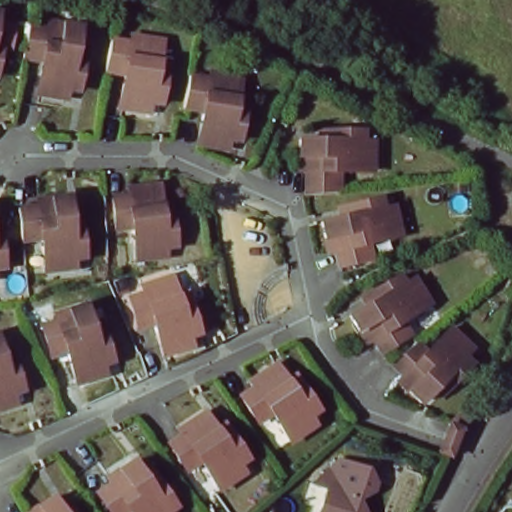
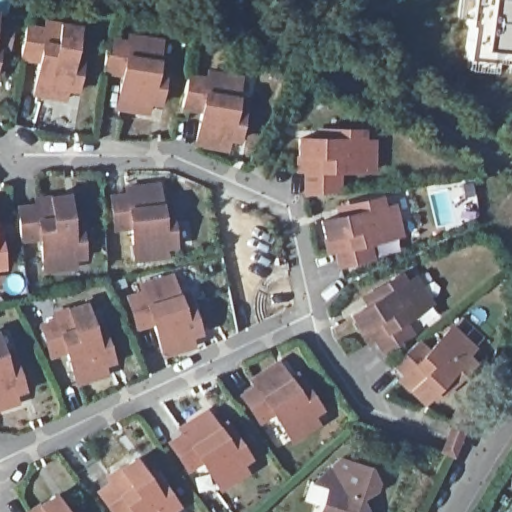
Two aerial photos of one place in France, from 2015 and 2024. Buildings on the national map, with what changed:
new [(467,24),(461,22),(464,0),(512,0),(512,63),(462,59),(467,24)]
unchanged [(41,28),(42,21),(74,26),(69,56),(78,58),(73,90),(63,88),(61,99),(31,94),(36,60),(23,58),(20,57),(22,45),(25,25),(41,28)]
unchanged [(1,32),(0,38),(0,32),(1,32)]
unchanged [(128,42),(129,35),(160,40),(155,70),(165,71),(160,103),(150,101),(148,112),(117,108),(123,74),(107,71),(103,70),(103,68),(108,39),(128,42)]
unchanged [(207,79),(208,71),(239,76),(234,107),(244,109),(238,140),(228,139),(226,149),(196,144),(198,131),(199,125),(202,110),(189,108),(187,108),(183,107),(182,107),(186,82),(187,75),(207,79)]
unchanged [(334,138),(334,129),(366,128),(366,137),(377,137),(377,170),(342,170),(342,191),(310,195),(310,170),(309,170),(303,170),(303,138),(334,138)]
unchanged [(127,195),(127,193),(126,187),(157,184),(161,215),(170,214),(174,245),(164,246),(165,257),(135,261),(131,227),(115,229),(111,196),(127,195)]
unchanged [(357,213),(355,204),(385,196),(388,206),(398,204),(405,235),(372,242),(375,258),(344,265),(341,250),(334,251),(327,220),(357,213)]
unchanged [(67,200),(70,231),(79,230),(82,261),(72,262),(73,273),(44,276),(40,242),(20,245),(16,213),(22,212),(35,211),(36,210),(35,204),(67,200)]
unchanged [(3,225),(4,242),(6,270),(0,271),(0,226),(3,225)]
unchanged [(399,273),(404,281),(413,275),(430,302),(400,320),(409,334),(382,351),(379,345),(374,337),(368,341),(350,314),(377,297),(372,290),(399,273)]
unchanged [(147,292),(144,285),(175,275),(184,305),(193,301),(203,332),(194,335),(197,345),(168,355),(165,345),(158,322),(141,328),(131,297),(147,292)]
unchanged [(55,320),(53,313),(83,303),(93,332),(102,330),(111,360),(102,363),(105,373),(76,382),(66,351),(50,356),(40,325),(55,320)]
unchanged [(432,351),(455,327),(477,347),(470,355),(477,362),(455,385),(449,379),(428,401),(405,380),(409,375),(410,375),(395,361),(422,341),(432,351)]
unchanged [(8,366),(17,362),(27,393),(18,396),(21,406),(0,414),(0,342),(8,366)]
unchanged [(277,362),(294,387),(302,382),(320,408),(311,415),(318,424),(292,441),(273,412),(259,421),(241,395),(255,385),(251,380),(277,362)]
unchanged [(450,455),(440,450),(450,422),(470,400),(480,409),(464,426),(453,455),(450,455)]
unchanged [(205,410),(223,435),(230,430),(248,456),(240,462),(246,471),(221,489),(202,460),(188,470),(170,443),(174,440),(183,434),(179,428),(205,410)]
unchanged [(317,508),(305,499),(340,455),(369,467),(360,502),(370,512),(322,512),(317,508)]
unchanged [(151,467),(160,481),(176,505),(168,510),(169,512),(132,512),(130,510),(126,512),(112,512),(99,491),(112,482),(108,476),(133,458),(143,473),(151,467)]
unchanged [(54,495),(65,512),(29,512),(54,495)]

